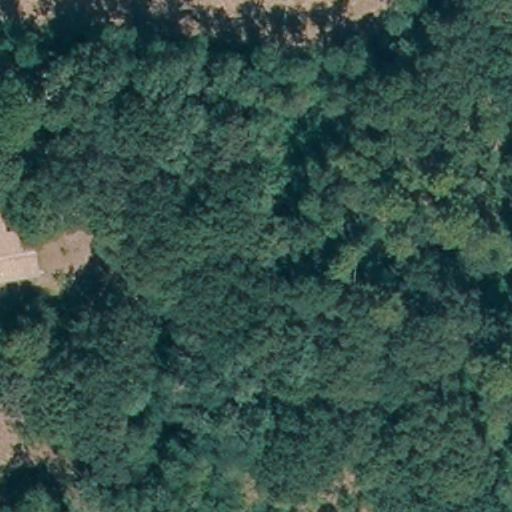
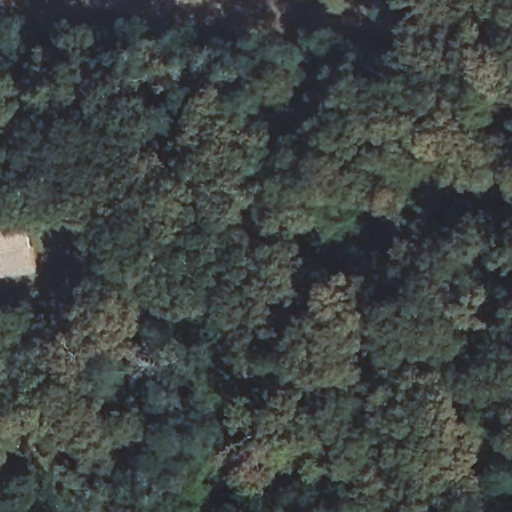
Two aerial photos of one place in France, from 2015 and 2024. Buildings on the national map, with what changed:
unchanged [(28,266),(0,273),(0,232),(19,229),(28,266)]

